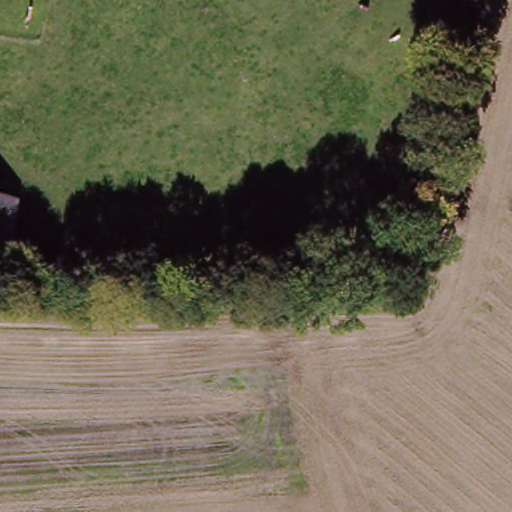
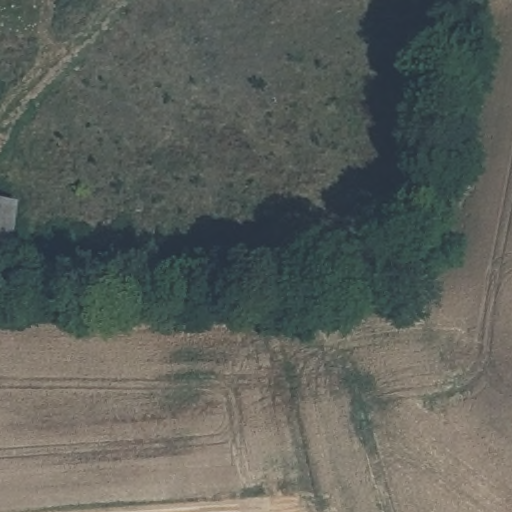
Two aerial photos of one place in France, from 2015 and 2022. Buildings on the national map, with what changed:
unchanged [(3,199),(0,217),(0,198),(3,199)]

